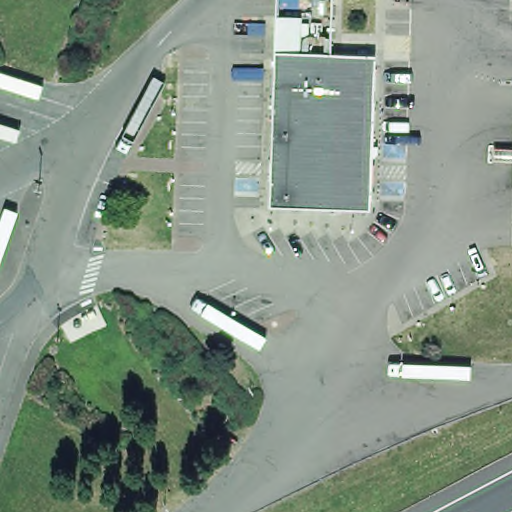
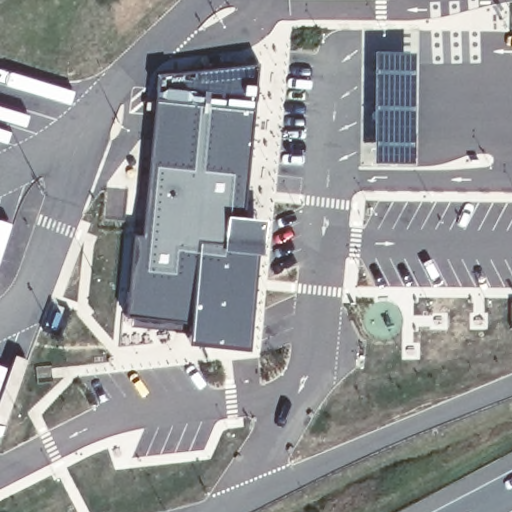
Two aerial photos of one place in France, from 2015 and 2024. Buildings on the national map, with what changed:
demolished [(365,59),(361,214),(263,209),(271,0),(321,0),(322,55),(365,59)]
new [(416,48),(420,164),(373,163),(375,49),(416,48)]
new [(260,60),(247,211),(267,215),(264,254),(256,252),(245,347),(189,342),(190,329),(127,324),(133,233),(143,235),(157,72),(260,60)]
new [(170,431),(185,458),(93,509),(79,479),(170,431)]

